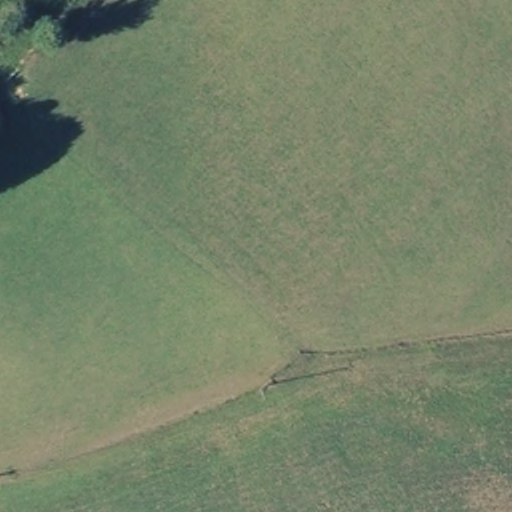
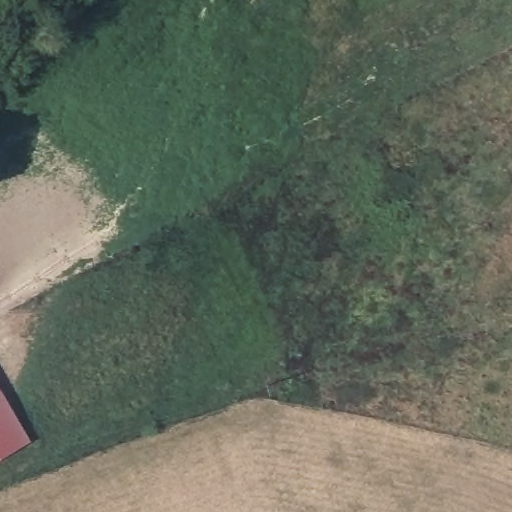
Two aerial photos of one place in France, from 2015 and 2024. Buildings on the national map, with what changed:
new [(30,441),(0,459),(0,391),(30,441)]

